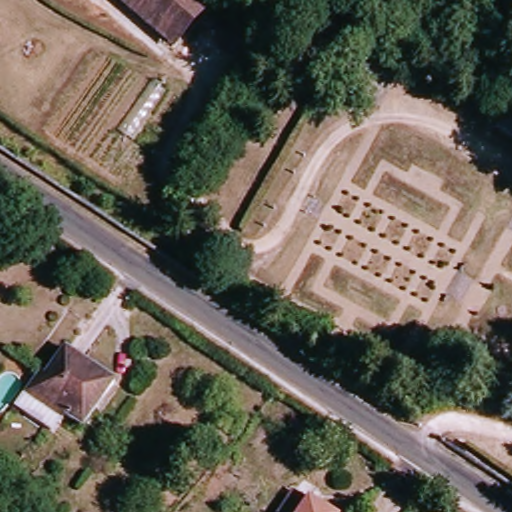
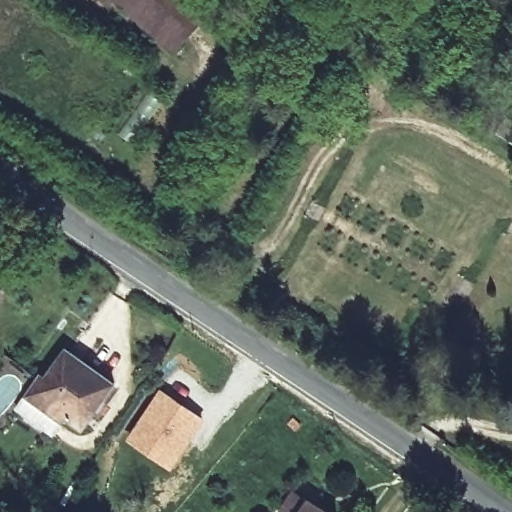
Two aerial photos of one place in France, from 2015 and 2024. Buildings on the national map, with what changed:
unchanged [(119,0),(208,0),(223,15),(181,60),(119,0)]
unchanged [(113,390),(79,434),(28,397),(64,352),(113,390)]
new [(159,388),(205,420),(171,470),(124,440),(159,388)]
unchanged [(309,512),(318,500),(336,512),(309,512)]

